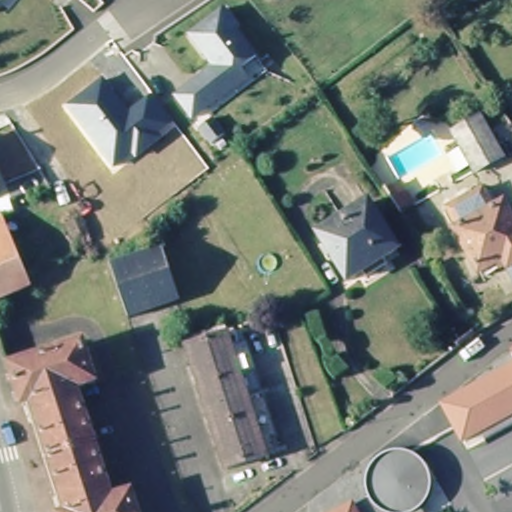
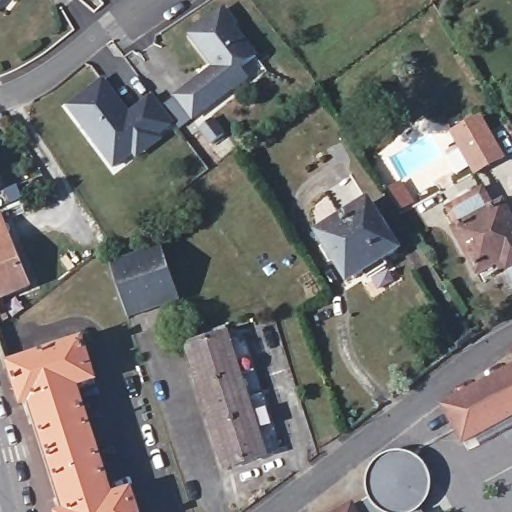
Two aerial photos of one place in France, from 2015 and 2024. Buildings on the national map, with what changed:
unchanged [(0,12),(0,0),(4,0),(5,5),(0,12)]
unchanged [(233,92),(195,120),(179,97),(203,80),(205,82),(218,73),(218,69),(215,64),(212,66),(192,37),(227,12),(238,27),(235,30),(258,61),(242,72),(245,76),(249,81),(233,92)]
unchanged [(175,120),(161,131),(163,135),(138,155),(134,150),(113,167),(66,104),(103,74),(130,109),(152,91),(175,120)]
unchanged [(217,119),(229,135),(217,144),(205,127),(217,119)]
unchanged [(484,122),(505,161),(477,177),(456,137),(484,122)]
unchanged [(399,190),(411,209),(399,216),(396,211),(387,197),(399,190)]
unchanged [(450,209),(471,197),(485,190),(488,196),(486,197),(494,211),(505,205),(512,217),(512,269),(505,258),(480,272),(457,231),(461,229),(450,209)]
unchanged [(371,208),(399,254),(346,286),(320,239),(371,208)]
unchanged [(10,241),(11,242),(0,247),(0,217),(10,241)]
unchanged [(29,287),(0,299),(0,247),(11,242),(29,287)]
unchanged [(162,251),(179,302),(130,317),(113,267),(162,251)]
unchanged [(0,316),(0,310),(2,315),(0,316)]
unchanged [(236,327),(277,456),(224,472),(184,343),(236,327)]
unchanged [(89,342),(101,381),(83,386),(117,497),(136,492),(143,512),(75,512),(76,512),(42,399),(29,403),(17,366),(89,342)]
unchanged [(464,441),(455,425),(445,406),(503,373),(512,369),(512,414),(464,441)]
unchanged [(348,509),(365,500),(363,496),(362,491),(362,487),(363,480),(364,476),(366,471),(370,466),(374,461),(380,457),(387,455),(393,454),(400,455),(403,456),(407,457),(413,460),(418,464),(422,470),(425,476),(427,482),(427,489),(426,496),(423,502),(419,507),(415,512),(343,512),(348,509)]

